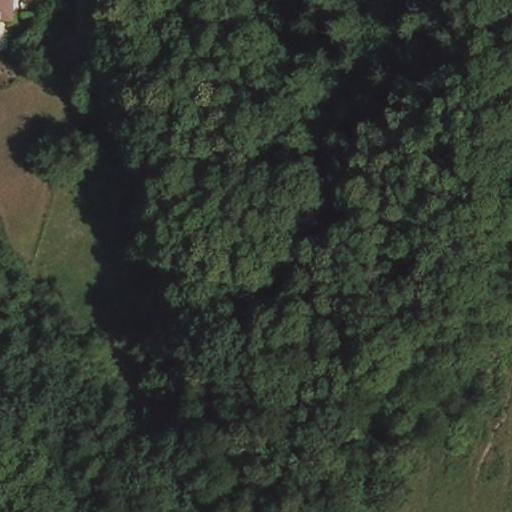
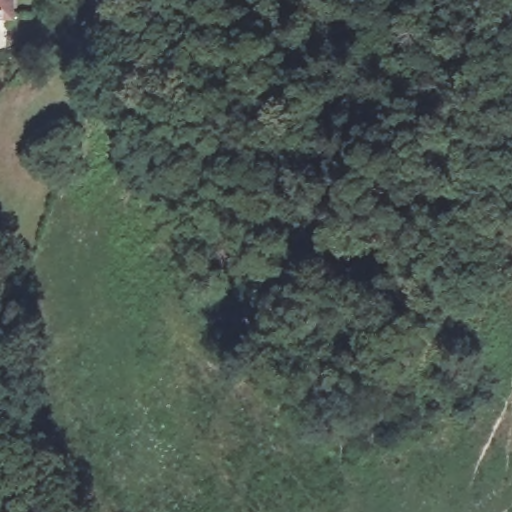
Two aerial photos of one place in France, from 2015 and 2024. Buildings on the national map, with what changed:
unchanged [(0,20),(0,0),(14,0),(14,20),(0,20)]

